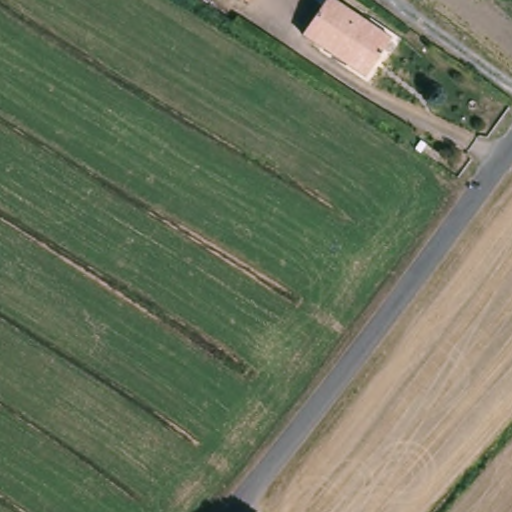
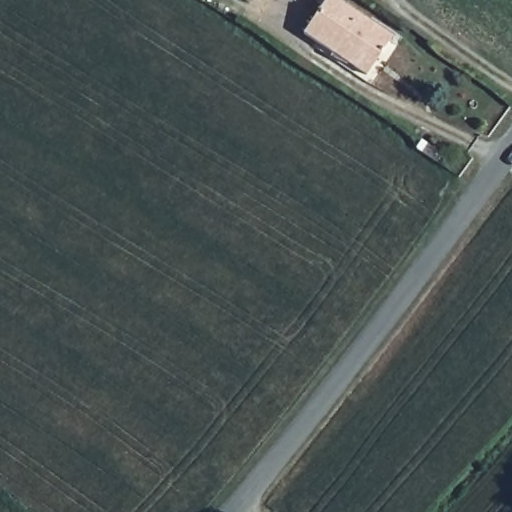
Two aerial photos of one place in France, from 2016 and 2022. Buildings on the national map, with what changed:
unchanged [(239,0),(255,0),(250,7),(239,0)]
unchanged [(366,80),(303,37),(328,0),(392,42),(366,80)]

